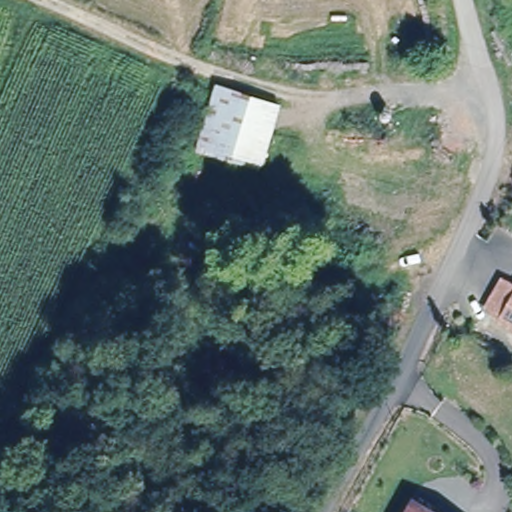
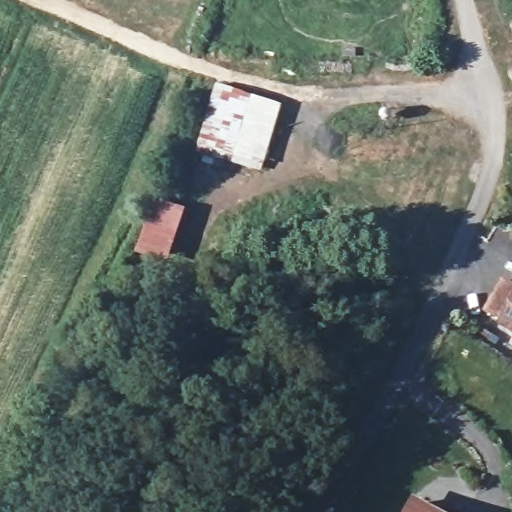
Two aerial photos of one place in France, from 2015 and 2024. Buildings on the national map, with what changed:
unchanged [(280,111),(262,171),(194,155),(211,89),(280,111)]
new [(161,264),(131,249),(159,197),(188,212),(161,264)]
unchanged [(512,340),(497,332),(500,327),(485,317),(499,293),(512,302),(512,340)]
unchanged [(410,512),(415,501),(437,512),(410,512)]

